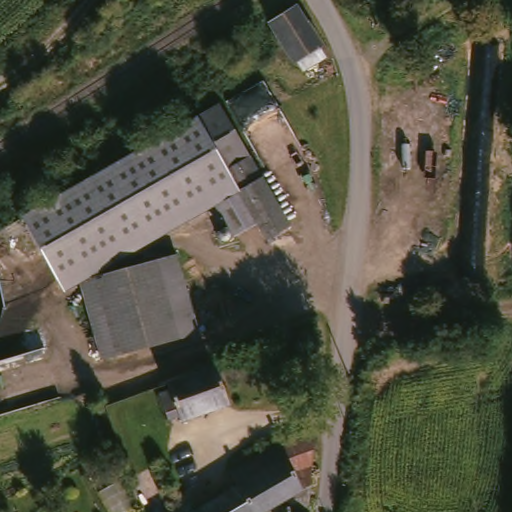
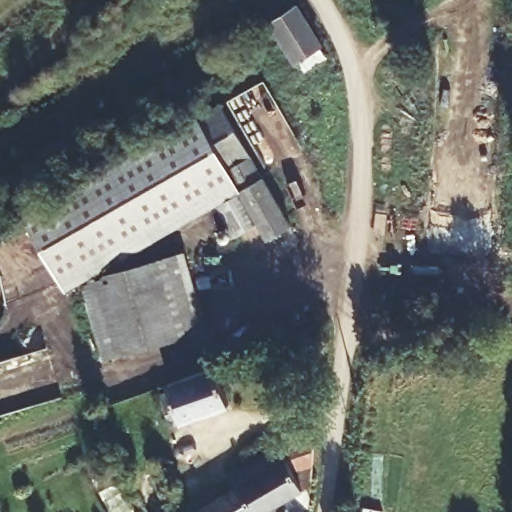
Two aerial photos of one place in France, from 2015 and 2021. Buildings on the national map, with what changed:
unchanged [(297,7),(321,46),(320,46),(327,56),(304,70),(297,61),(296,61),(272,24),(297,7)]
unchanged [(274,243),(260,222),(236,235),(220,210),(109,270),(182,252),(203,331),(101,357),(84,286),(67,296),(23,213),(272,71),(290,105),(243,127),(291,226),(274,243)]
unchanged [(199,411),(189,414),(180,390),(191,386),(189,378),(205,372),(200,360),(232,349),(236,362),(249,400),(202,416),(199,411)]
unchanged [(283,439),(321,426),(314,512),(309,512),(293,510),(291,495),(261,512),(260,512),(243,480),(238,471),(235,468),(283,439)]
unchanged [(202,505),(243,480),(260,512),(189,512),(202,505)]
unchanged [(292,510),(293,510),(309,512),(291,512),(292,510)]

